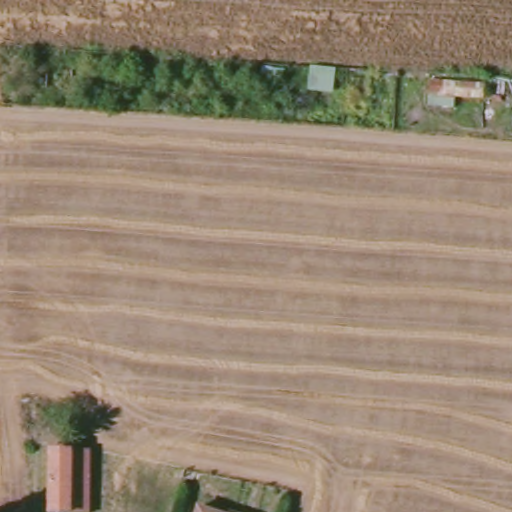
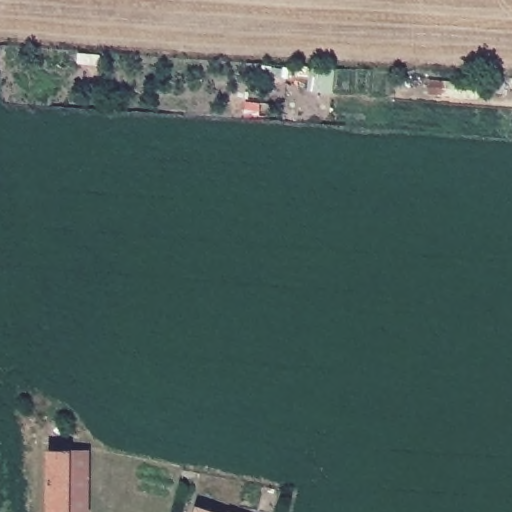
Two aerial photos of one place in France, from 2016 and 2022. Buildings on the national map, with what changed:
unchanged [(287,69),(286,84),(262,82),(263,67),(287,69)]
unchanged [(85,512),(45,512),(45,452),(85,453),(85,512)]
unchanged [(199,504),(225,512),(196,512),(199,504)]
unchanged [(230,509),(240,512),(229,512),(230,509)]

